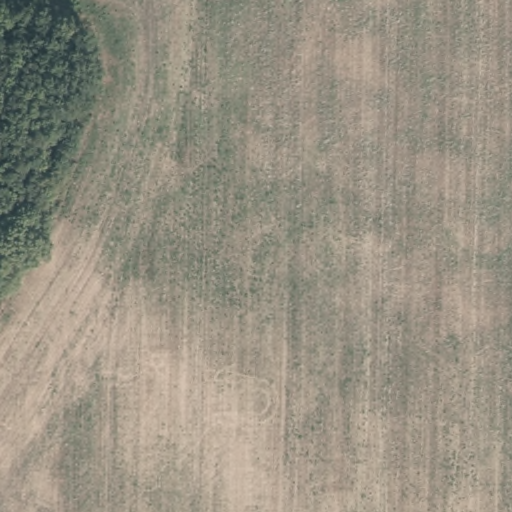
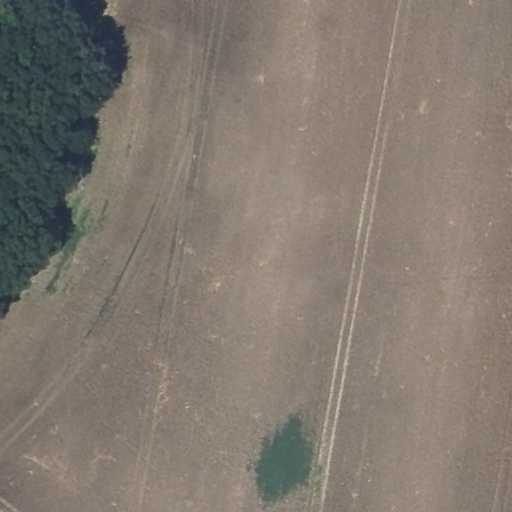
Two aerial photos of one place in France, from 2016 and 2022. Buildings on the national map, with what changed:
[]

